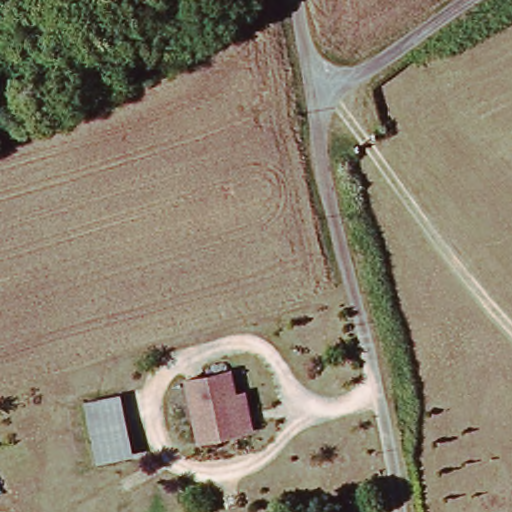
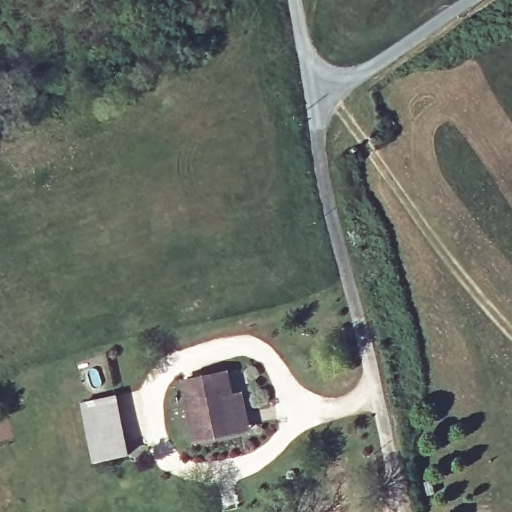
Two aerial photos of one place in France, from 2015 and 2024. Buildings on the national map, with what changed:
unchanged [(254,430),(245,431),(202,440),(191,380),(233,371),(237,395),(247,393),(254,430)]
unchanged [(132,452),(99,458),(89,399),(122,393),(132,452)]

